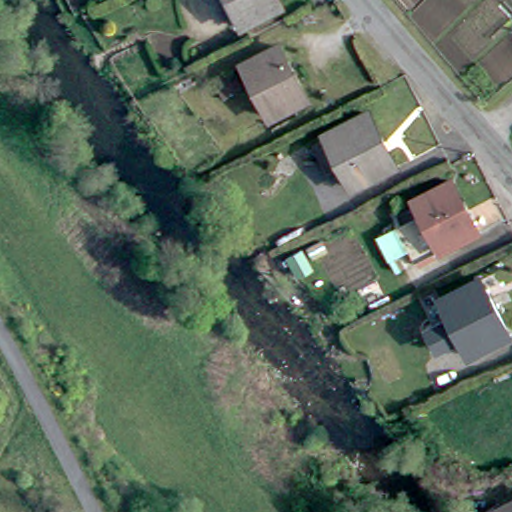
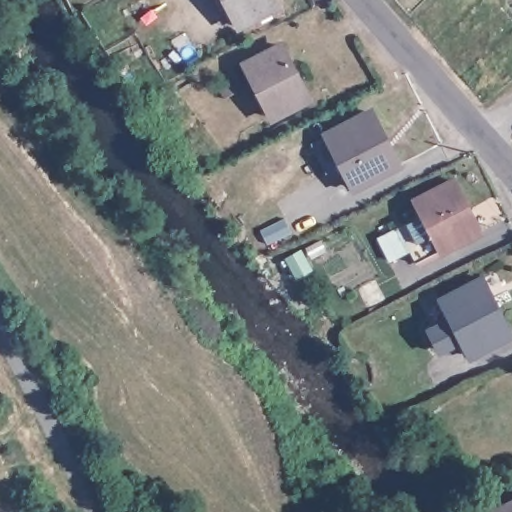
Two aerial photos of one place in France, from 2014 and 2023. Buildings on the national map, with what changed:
unchanged [(238,24),(227,0),(273,0),(275,4),(238,24)]
unchanged [(271,125),(243,72),(279,53),(308,107),(271,125)]
unchanged [(351,191),(324,138),(366,115),(394,168),(351,191)]
unchanged [(391,226),(403,220),(426,209),(418,195),(454,176),(479,227),(421,256),(411,237),(399,243),(391,226)]
unchanged [(316,246),(324,261),(309,267),(302,252),(316,246)]
unchanged [(467,358),(439,301),(479,282),(506,337),(467,358)]
unchanged [(489,512),(512,502),(512,512),(489,512)]

